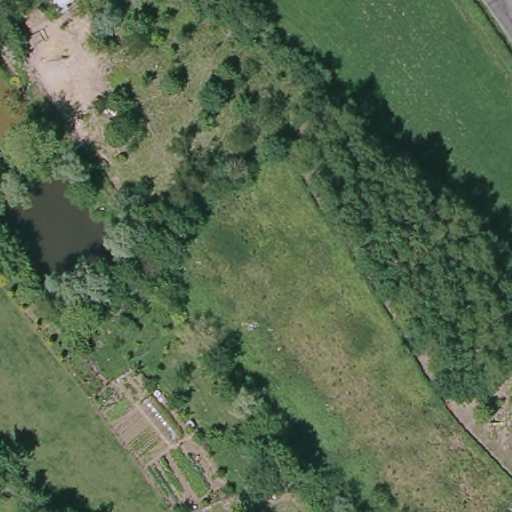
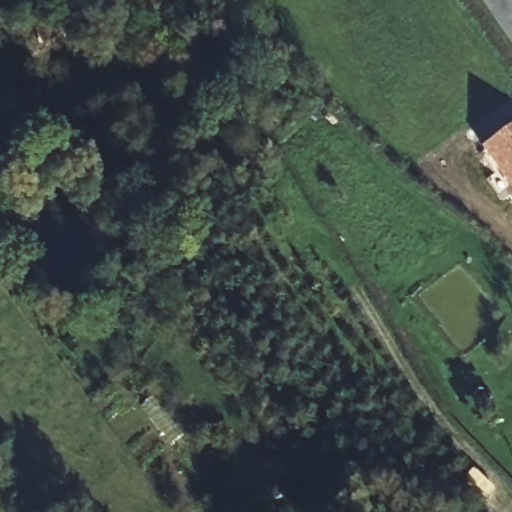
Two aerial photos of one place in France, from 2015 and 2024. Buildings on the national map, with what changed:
new [(479,149),(512,126),(512,195),(479,149)]

